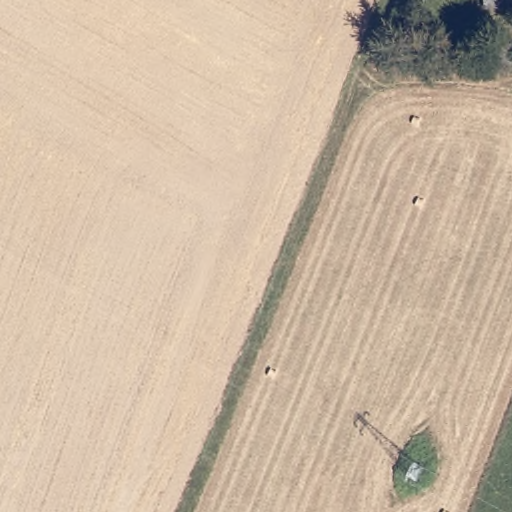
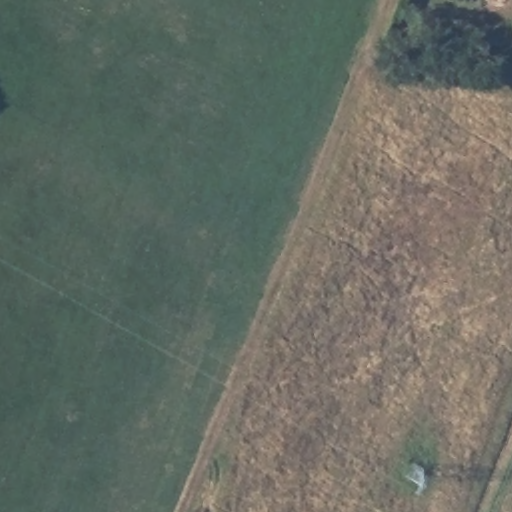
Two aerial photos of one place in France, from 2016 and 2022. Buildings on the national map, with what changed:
unchanged [(512,8),(483,8),(484,0),(512,0),(512,8)]

